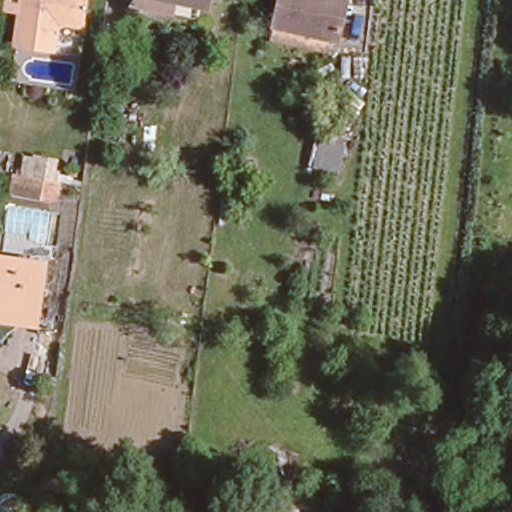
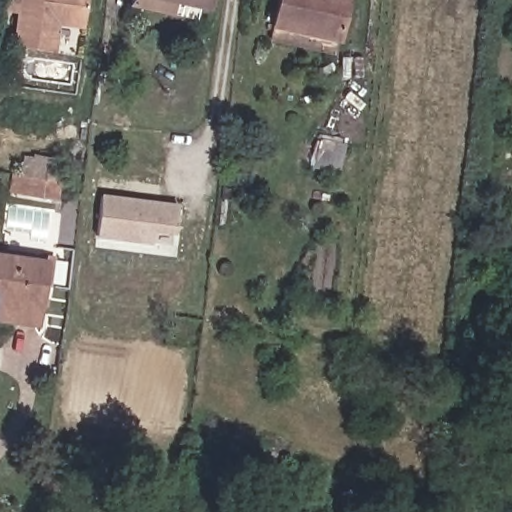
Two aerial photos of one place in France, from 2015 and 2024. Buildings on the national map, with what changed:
unchanged [(51,17),(47,50),(14,46),(19,0),(81,0),(79,20),(51,17)]
unchanged [(137,7),(138,0),(170,0),(167,13),(137,7)]
unchanged [(207,5),(179,0),(208,0),(207,5)]
unchanged [(270,25),(277,0),(344,0),(332,43),(270,25)]
unchanged [(313,167),(318,135),(342,139),(337,171),(313,167)]
unchanged [(58,200),(10,195),(12,174),(20,175),(21,162),(33,164),(34,155),(56,157),(54,181),(61,181),(58,200)]
new [(152,232),(150,245),(95,238),(101,195),(177,204),(174,235),(152,232)]
unchanged [(29,249),(51,252),(47,283),(37,282),(32,326),(0,321),(0,249),(28,254),(29,249)]
unchanged [(278,500),(281,482),(310,487),(307,505),(278,500)]

